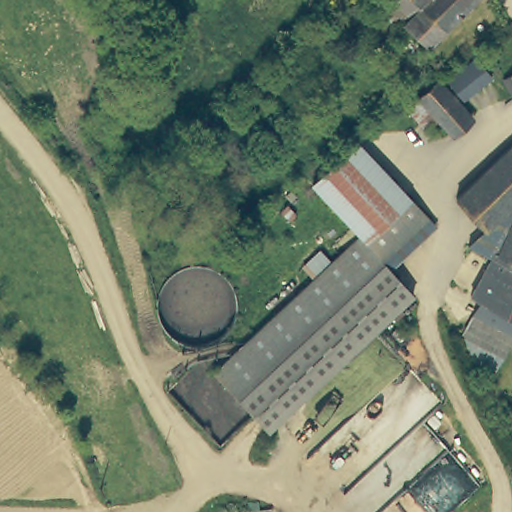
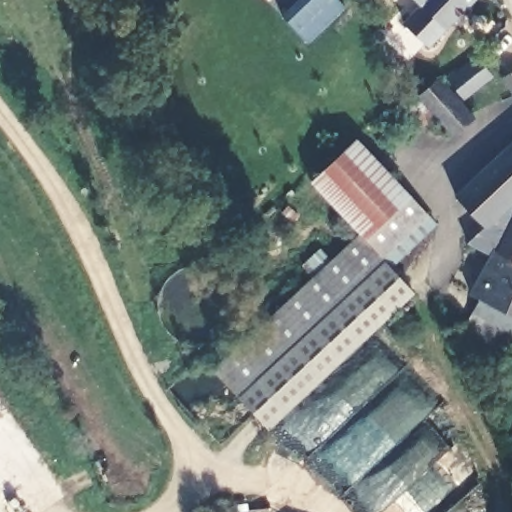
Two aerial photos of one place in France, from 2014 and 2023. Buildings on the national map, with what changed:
new [(307,44),(281,17),(299,0),(339,0),(345,6),(307,44)]
unchanged [(426,47),(400,28),(409,18),(390,0),(465,0),(426,47)]
unchanged [(488,75),(461,96),(446,78),(473,55),(488,75)]
unchanged [(499,76),(512,70),(512,92),(509,93),(499,76)]
unchanged [(436,118),(425,129),(406,107),(418,97),(417,96),(438,77),(469,113),(449,132),(436,118)]
unchanged [(319,279),(309,269),(327,251),(337,262),(362,238),(366,234),(319,183),(362,141),(401,183),(438,223),(392,267),(416,293),(403,306),(276,429),(223,372),(319,279)]
unchanged [(472,293),(493,255),(469,242),(486,226),(458,195),(512,144),(512,331),(474,312),(481,298),(472,293)]
unchanged [(474,312),(512,331),(512,345),(509,349),(498,368),(489,384),(465,341),(462,334),(463,331),(474,312)]

